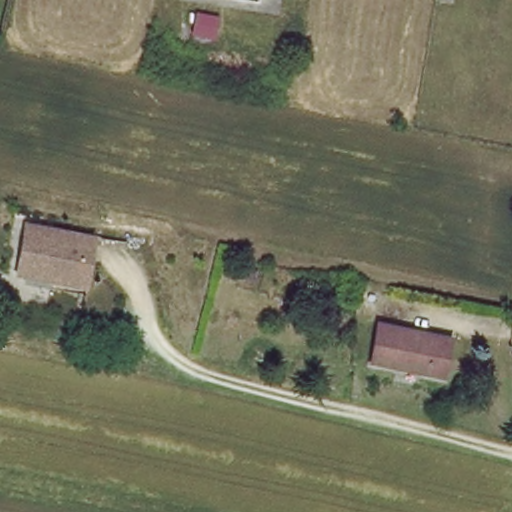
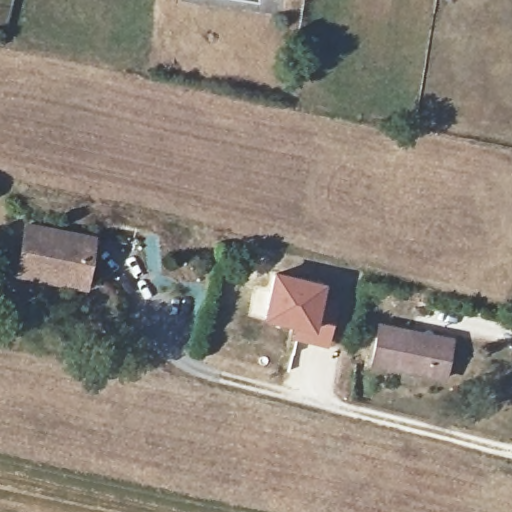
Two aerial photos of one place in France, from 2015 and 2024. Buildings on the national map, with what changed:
unchanged [(94,243),(85,292),(17,277),(27,229),(94,243)]
new [(272,271),(326,282),(318,319),(334,323),(328,348),(290,339),(293,327),(262,320),(272,271)]
unchanged [(455,339),(444,381),(370,364),(378,322),(455,339)]

